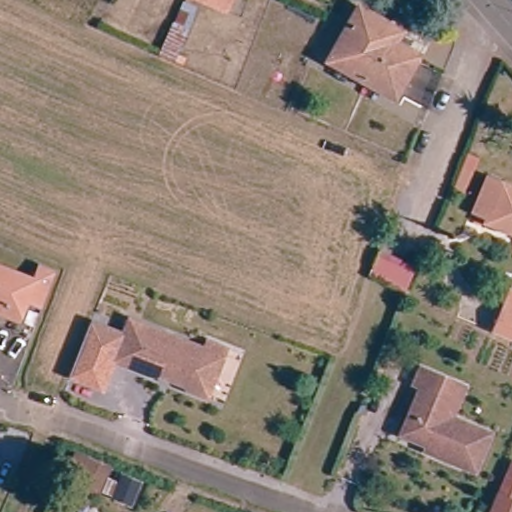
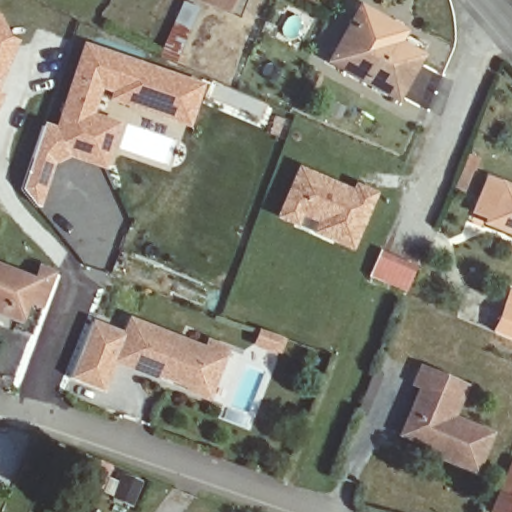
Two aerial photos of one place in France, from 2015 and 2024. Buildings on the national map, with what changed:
unchanged [(176,53),(165,46),(186,0),(200,0),(177,52),(176,53)]
unchanged [(225,0),(233,0),(232,3),(225,0)]
unchanged [(400,90),(382,82),(332,59),(356,8),(387,23),(402,29),(397,40),(419,50),(400,90)]
new [(14,39),(15,44),(0,88),(0,16),(4,20),(14,39)]
new [(29,155),(42,121),(52,124),(81,40),(202,83),(187,127),(108,98),(110,94),(100,91),(93,111),(120,121),(102,170),(68,159),(55,165),(40,202),(36,209),(20,189),(29,155)]
new [(214,80),(270,104),(260,125),(231,112),(232,109),(207,97),(214,80)]
new [(352,189),(355,183),(377,193),(352,250),(311,234),(317,223),(301,217),(296,227),(275,219),(296,165),(352,189)]
unchanged [(485,219),(487,214),(477,210),(492,174),(512,183),(512,231),(485,219)]
new [(407,292),(372,278),(384,253),(417,268),(407,292)]
unchanged [(0,307),(0,263),(34,277),(40,260),(55,268),(41,304),(27,298),(25,304),(20,314),(6,309),(0,307)]
unchanged [(498,329),(508,305),(512,296),(512,334),(498,329)]
unchanged [(105,396),(67,381),(93,319),(124,332),(112,360),(117,362),(105,396)]
unchanged [(112,360),(129,319),(204,349),(207,341),(226,349),(216,372),(206,398),(155,378),(112,360)]
unchanged [(426,451),(397,439),(407,416),(418,391),(411,388),(418,372),(461,391),(448,422),(487,438),(470,477),(430,458),(424,456),(426,451)]
unchanged [(100,502),(65,487),(77,457),(112,472),(100,502)]
unchanged [(500,512),(512,483),(512,512),(501,512),(500,512)]

